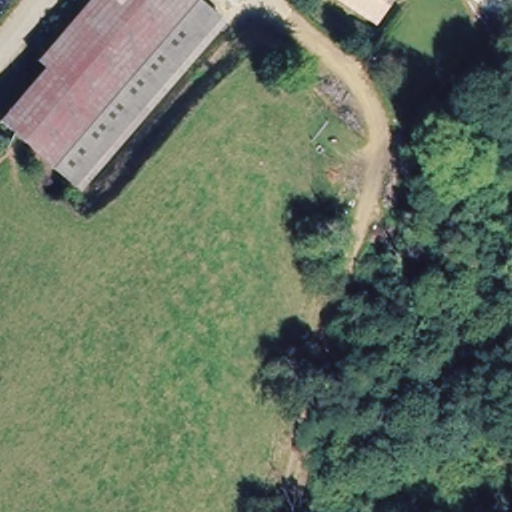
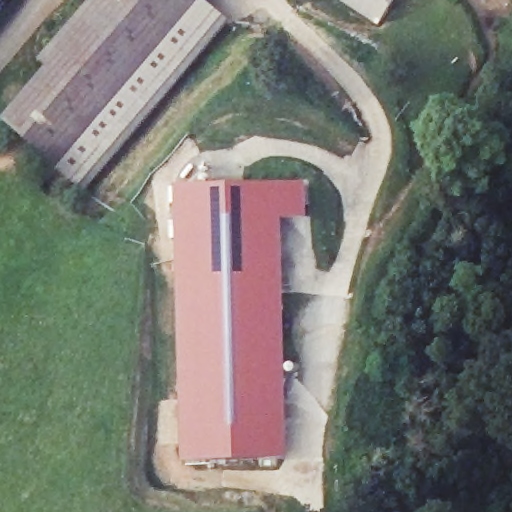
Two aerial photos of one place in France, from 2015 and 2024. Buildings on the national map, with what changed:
unchanged [(227,24),(83,190),(1,119),(45,69),(36,63),(90,0),(200,0),(227,24)]
unchanged [(382,17),(352,0),(392,0),(382,17)]
new [(181,461),(173,187),(305,185),(306,219),(280,220),(286,460),(181,461)]

